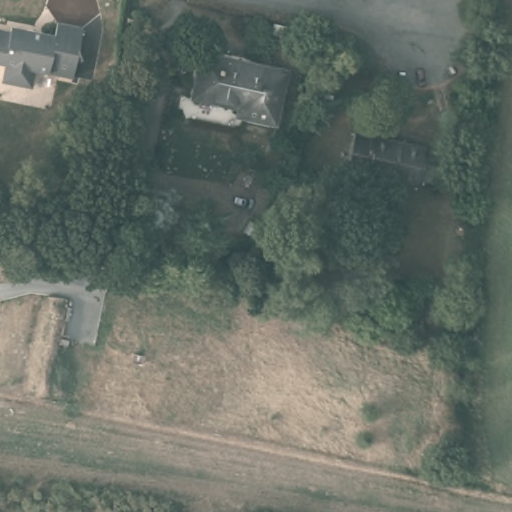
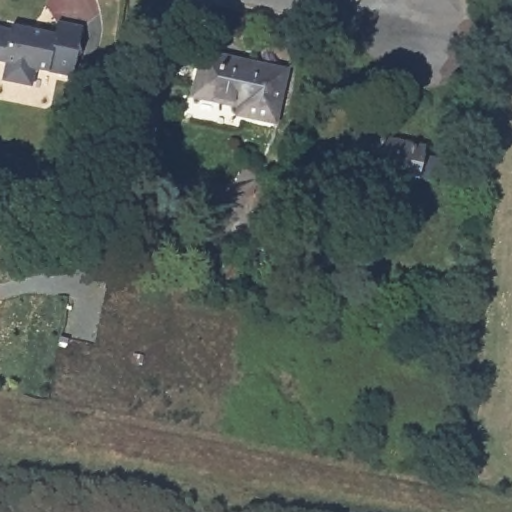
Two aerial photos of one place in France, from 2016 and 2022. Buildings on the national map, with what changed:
unchanged [(42,65),(38,81),(9,76),(12,58),(0,56),(0,25),(13,27),(15,21),(60,30),(63,17),(89,22),(78,72),(42,65)]
unchanged [(330,82),(336,49),(349,52),(347,66),(363,69),(360,89),(330,82)]
unchanged [(245,117),(247,106),(197,95),(205,53),(289,71),(279,122),(245,117)]
unchanged [(354,147),(360,115),(385,120),(383,135),(428,146),(421,182),(365,170),(350,167),(354,147)]
unchanged [(0,267),(0,248),(5,249),(2,267),(0,267)]
unchanged [(456,308),(452,333),(410,327),(413,312),(414,302),(456,308)]

